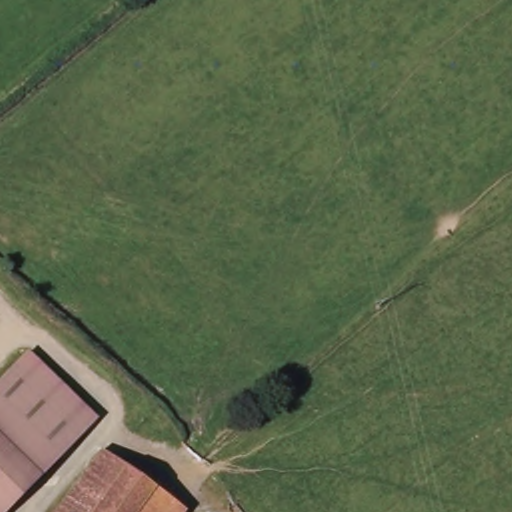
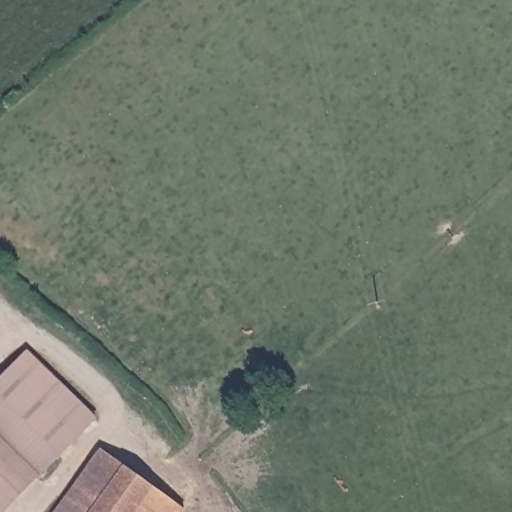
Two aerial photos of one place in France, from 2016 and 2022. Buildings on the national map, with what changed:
unchanged [(0,382),(24,356),(94,422),(38,481),(0,445),(0,382)]
unchanged [(0,512),(0,445),(38,481),(8,512),(0,512)]
unchanged [(181,512),(58,512),(59,510),(99,453),(181,512)]

